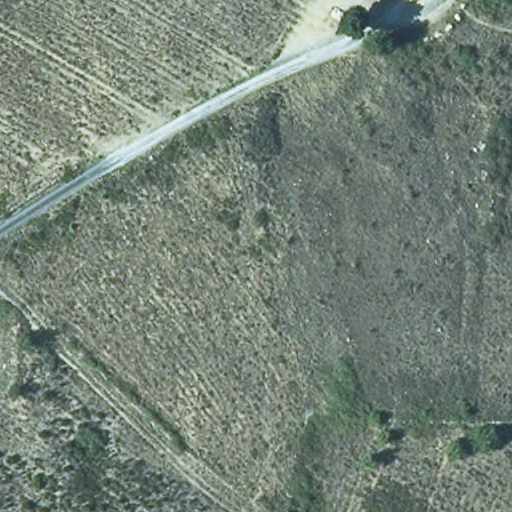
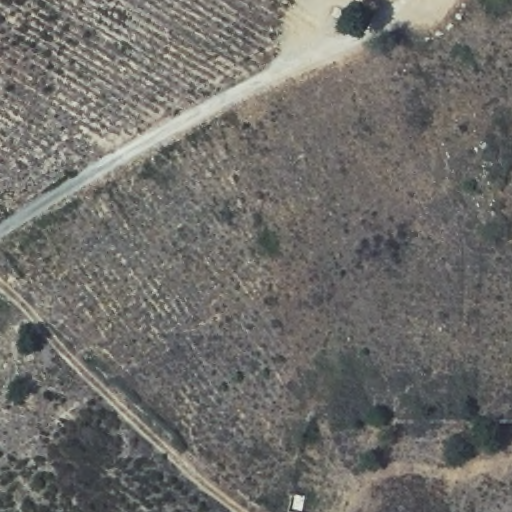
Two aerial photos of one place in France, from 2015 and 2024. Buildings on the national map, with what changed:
unchanged [(288,502),(305,504),(305,512),(286,512),(288,502)]

